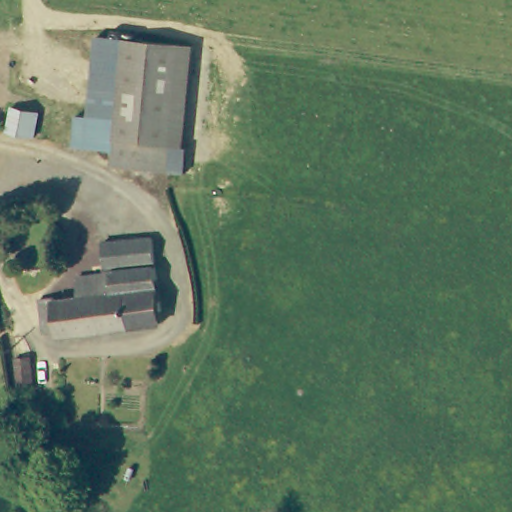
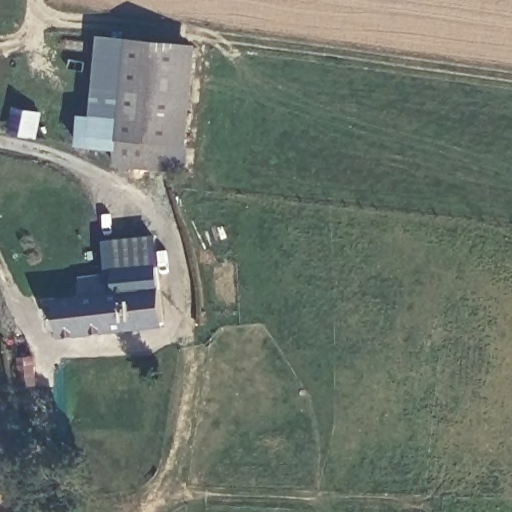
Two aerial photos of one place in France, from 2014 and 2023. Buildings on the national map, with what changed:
unchanged [(130,48),(129,79),(129,93),(127,152),(90,149),(90,120),(101,120),(101,74),(102,48),(102,41),(130,42),(130,48)]
unchanged [(130,168),(127,168),(127,159),(127,152),(129,93),(129,79),(130,48),(130,42),(187,43),(187,49),(184,169),(130,168)]
unchanged [(29,104),(22,133),(0,125),(0,109),(4,96),(29,104)]
unchanged [(152,287),(110,293),(109,292),(107,274),(102,243),(142,237),(152,235),(160,285),(157,286),(152,287)]
unchanged [(62,337),(61,332),(59,332),(47,334),(47,330),(42,300),(56,299),(56,302),(82,298),(79,278),(107,274),(109,292),(110,293),(152,287),(157,286),(160,285),(162,304),(165,322),(62,337)]

